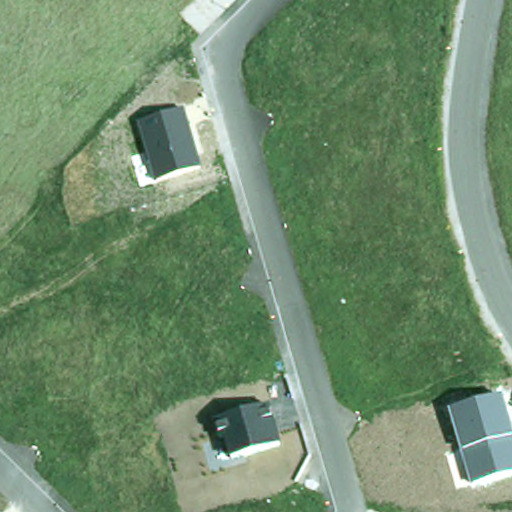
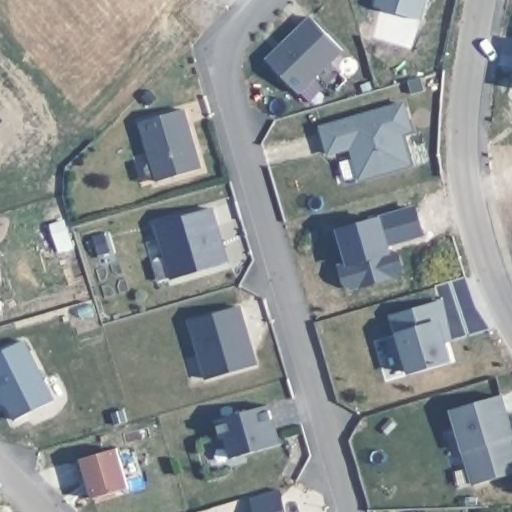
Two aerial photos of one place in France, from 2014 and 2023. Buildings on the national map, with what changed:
new [(344,49),(300,95),(264,60),(309,15),(344,49)]
new [(414,132),(404,135),(412,164),(359,179),(351,151),(328,158),(319,126),(405,100),(414,132)]
unchanged [(182,109),(197,167),(153,179),(137,124),(182,109)]
new [(230,263),(170,280),(154,223),(214,205),(230,263)]
new [(454,338),(447,341),(452,362),(408,375),(397,334),(391,314),(443,300),(454,338)]
new [(257,366),(205,380),(189,320),(241,305),(257,366)]
new [(25,344),(55,404),(16,423),(0,390),(0,357),(25,344)]
unchanged [(512,434),(512,473),(470,485),(449,411),(502,396),(512,434)]
unchanged [(282,400),(291,430),(278,434),(282,446),(230,459),(225,439),(221,441),(215,419),(282,400)]
new [(135,493),(97,504),(86,463),(125,453),(135,493)]

